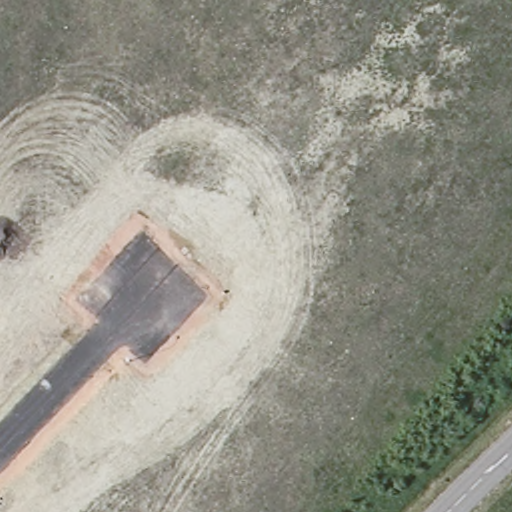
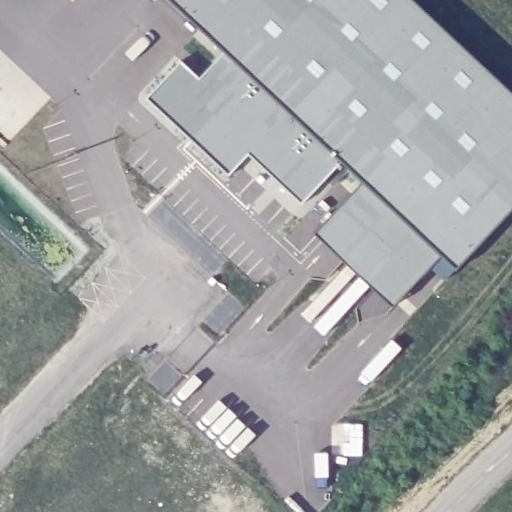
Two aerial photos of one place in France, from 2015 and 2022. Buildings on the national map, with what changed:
new [(340,160),(300,203),(248,154),(227,176),(145,98),(181,60),(199,77),(225,51),(171,0),(413,0),(512,93),(512,209),(455,270),(440,256),(392,307),(312,234),(362,182),(340,160)]
new [(153,3),(150,0),(156,0),(153,3)]

